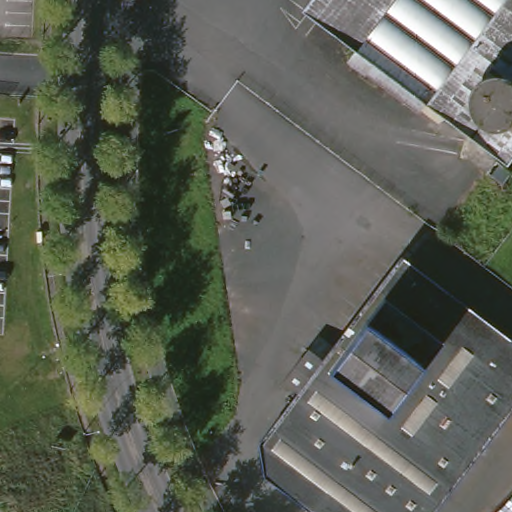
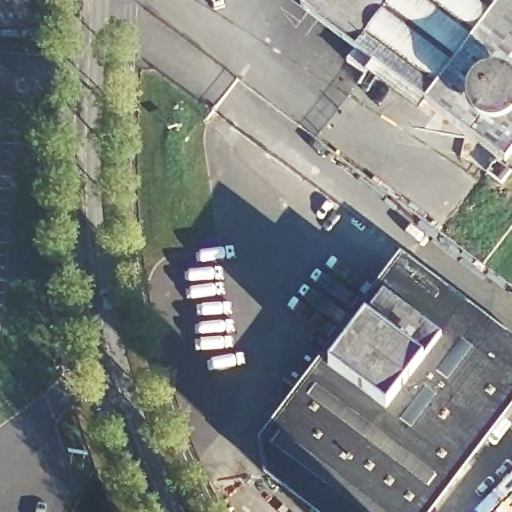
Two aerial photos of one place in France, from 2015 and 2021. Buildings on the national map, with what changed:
unchanged [(465,140),(476,127),(430,92),(425,100),(373,61),(379,54),(311,2),(313,0),(512,0),(512,150),(500,167),(465,140)]
unchanged [(313,512),(275,483),(269,448),(305,402),(288,389),(313,356),(330,369),(400,278),(491,346),(501,333),(512,341),(512,415),(439,512),(313,512)]

